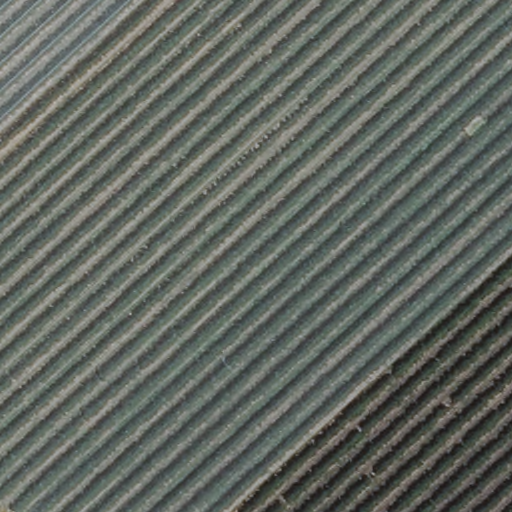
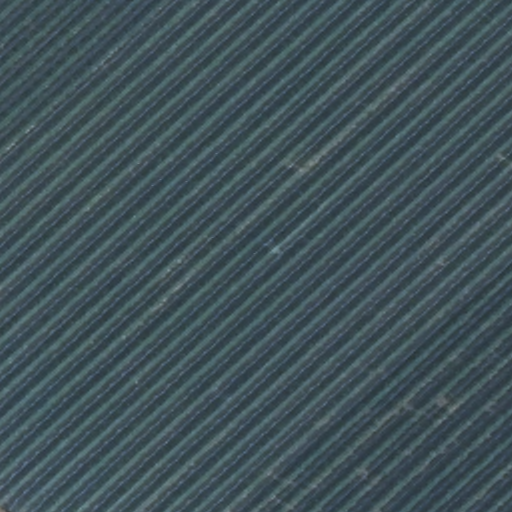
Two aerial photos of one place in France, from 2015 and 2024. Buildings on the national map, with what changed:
[]

